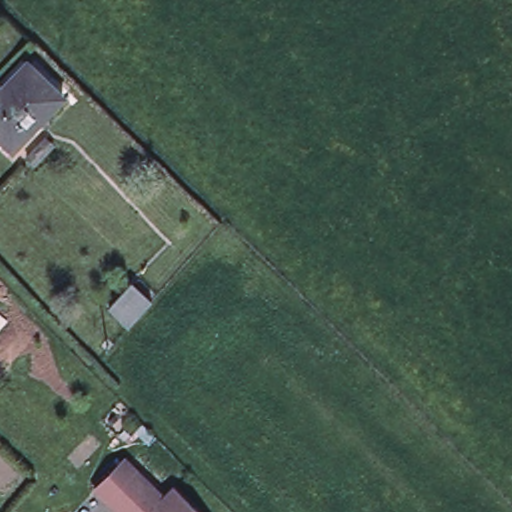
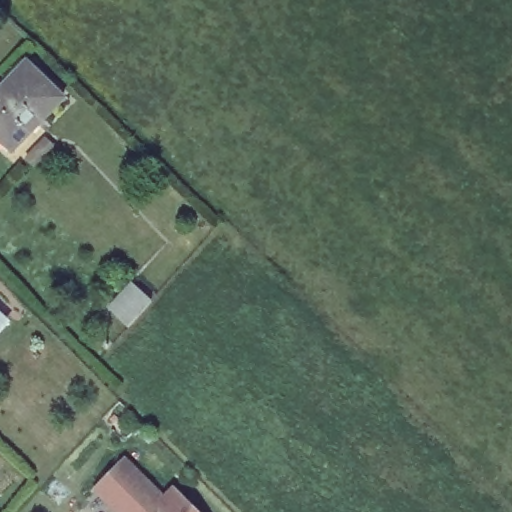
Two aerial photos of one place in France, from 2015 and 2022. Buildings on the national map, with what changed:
unchanged [(29,61),(66,97),(12,151),(0,139),(0,91),(29,61)]
unchanged [(50,139),(58,147),(38,167),(30,159),(50,139)]
unchanged [(108,310),(134,281),(155,300),(128,329),(108,310)]
unchanged [(91,490),(122,458),(134,470),(163,497),(172,488),(197,512),(115,512),(102,501),(91,490)]

